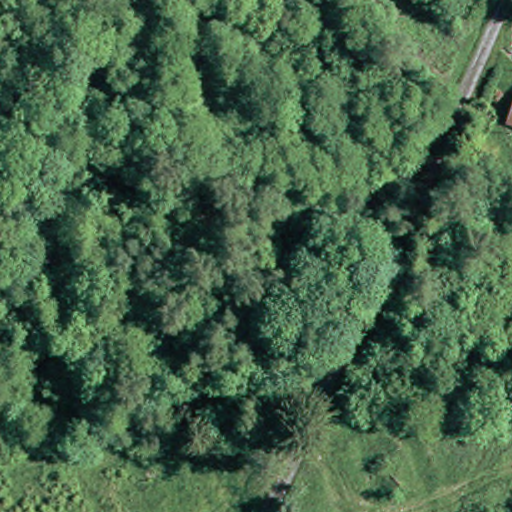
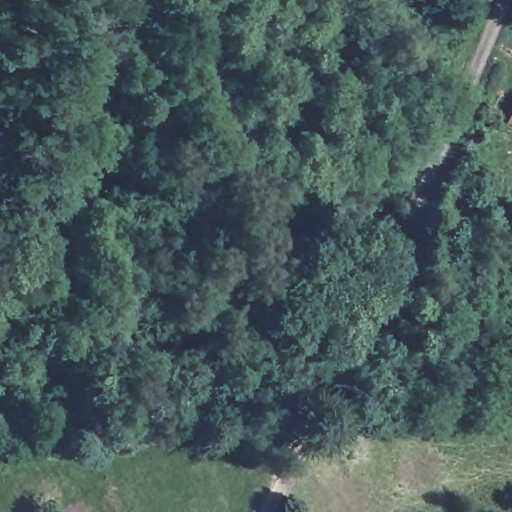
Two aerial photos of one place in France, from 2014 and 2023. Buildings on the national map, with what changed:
unchanged [(512,101),(512,120),(507,119),(512,101)]

